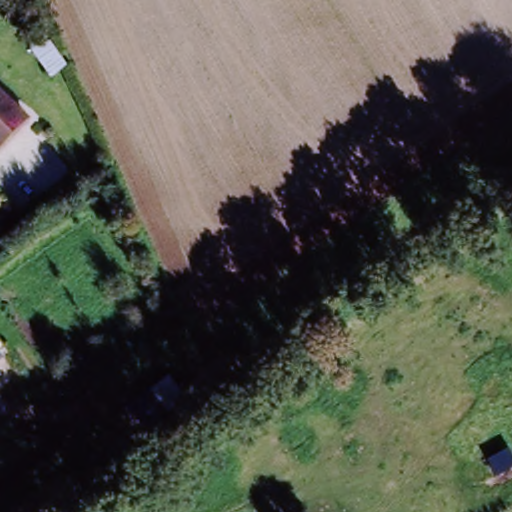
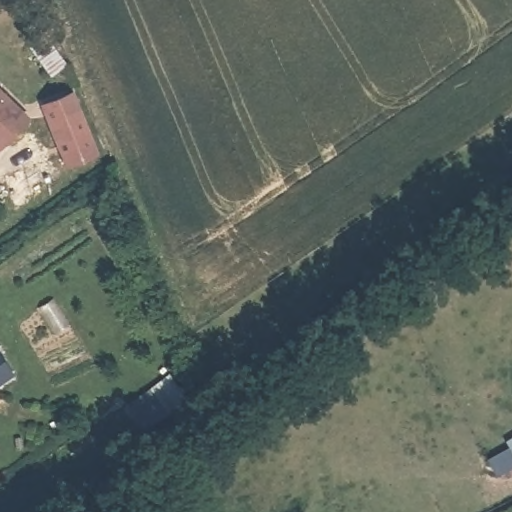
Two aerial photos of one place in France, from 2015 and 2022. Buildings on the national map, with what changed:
unchanged [(45,37),(67,73),(49,86),(25,50),(45,37)]
new [(74,93),(100,155),(67,167),(42,107),(74,93)]
unchanged [(0,144),(0,98),(23,119),(0,144)]

